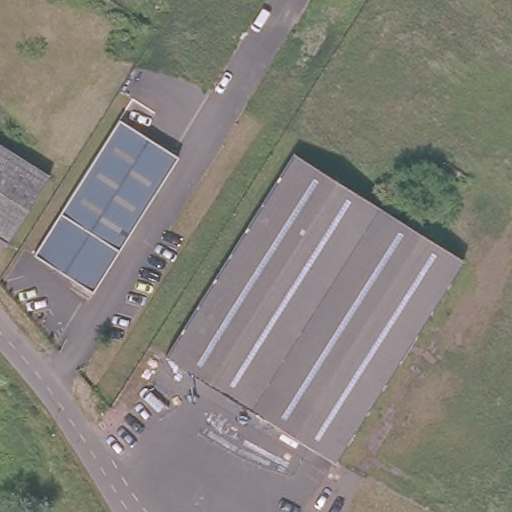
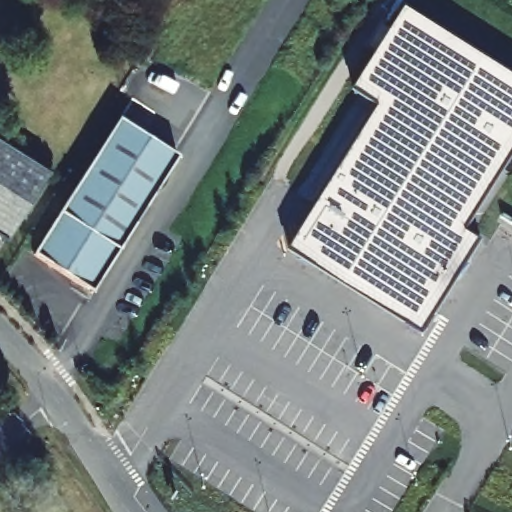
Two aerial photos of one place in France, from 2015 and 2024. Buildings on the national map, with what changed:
new [(290,254),(380,107),(355,92),(378,54),(367,47),(381,23),(394,31),(407,10),(512,76),(512,152),(464,230),(482,242),(424,337),(290,254)]
unchanged [(176,159),(90,293),(32,257),(118,120),(176,159)]
unchanged [(5,243),(0,240),(0,143),(49,175),(5,243)]
demolished [(299,153),(323,169),(334,180),(350,196),(353,200),(362,211),(372,225),(385,241),(407,270),(407,272),(415,284),(417,287),(434,315),(346,446),(249,352),(243,353),(190,367),(170,353),(299,153)]
demolished [(467,265),(434,315),(417,287),(415,284),(407,272),(407,270),(385,241),(372,225),(362,211),(353,200),(350,196),(334,180),(323,169),(467,265)]
demolished [(335,462),(190,367),(243,353),(249,352),(346,446),(335,462)]

